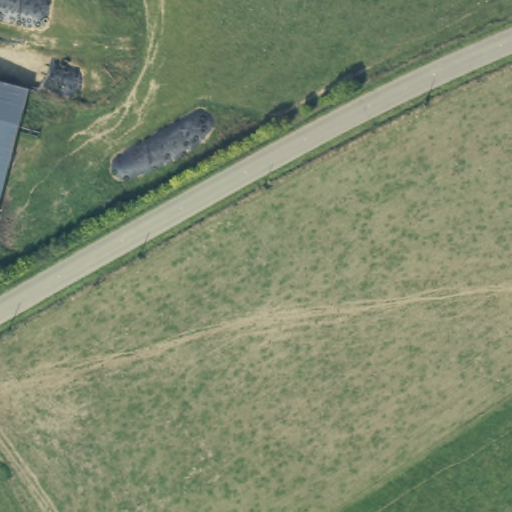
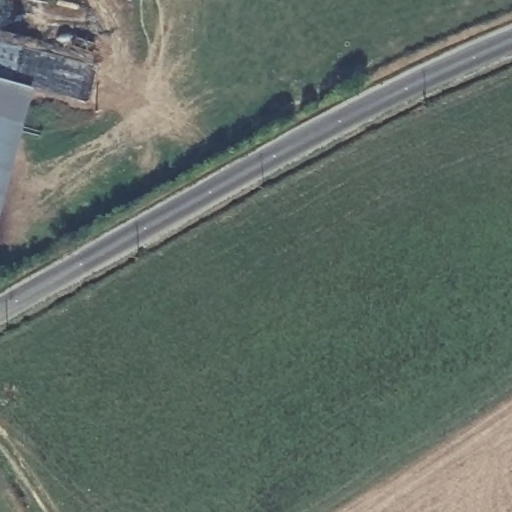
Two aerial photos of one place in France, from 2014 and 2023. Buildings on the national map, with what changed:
unchanged [(27,93),(0,187),(0,85),(27,93)]

